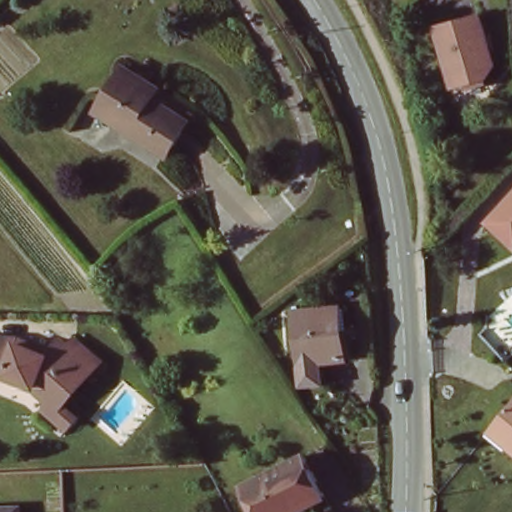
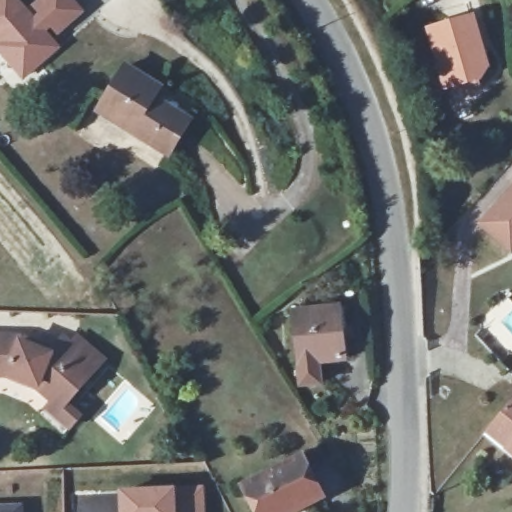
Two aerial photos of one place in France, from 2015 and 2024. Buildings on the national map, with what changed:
new [(22,0),(35,15),(39,12),(32,5),(38,0),(77,0),(87,11),(59,35),(53,28),(49,31),(63,47),(24,81),(0,54),(0,0),(22,0)]
unchanged [(470,19),(485,69),(483,70),(481,76),(477,80),(447,88),(430,31),(470,19)]
unchanged [(155,88),(148,99),(185,123),(163,156),(94,110),(123,66),(155,88)]
unchanged [(512,185),(512,251),(480,226),(499,202),(512,185)]
unchanged [(287,309),(340,304),(347,363),(319,365),(319,384),(296,387),(287,309)]
unchanged [(62,431),(46,415),(41,410),(47,403),(35,392),(30,389),(14,382),(3,377),(0,377),(0,338),(13,339),(46,352),(56,341),(65,348),(71,341),(97,363),(88,374),(67,397),(59,408),(73,420),(62,431)]
unchanged [(510,399),(512,400),(512,454),(502,447),(506,442),(487,427),(510,399)]
unchanged [(299,456),(320,497),(290,512),(253,512),(240,487),(299,456)]
new [(203,485),(205,512),(119,512),(117,488),(203,485)]
unchanged [(12,510),(19,510),(19,512),(0,512),(0,510),(12,510)]

